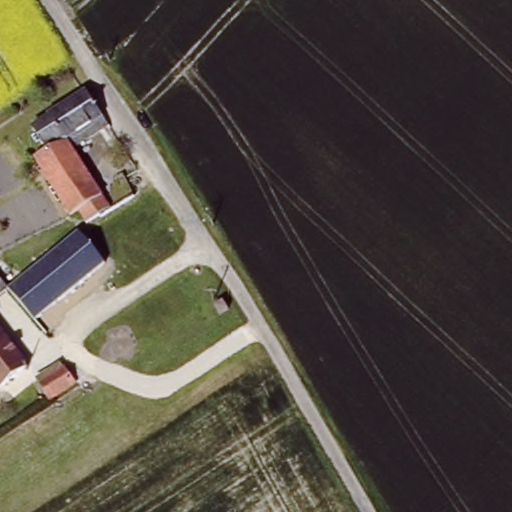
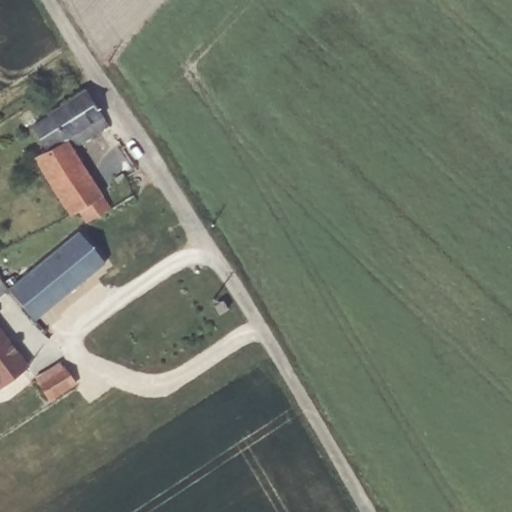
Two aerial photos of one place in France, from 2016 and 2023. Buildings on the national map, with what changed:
unchanged [(98,217),(88,224),(81,213),(76,215),(41,163),(50,157),(45,150),(52,145),(47,136),(57,129),(50,118),(87,93),(91,90),(117,133),(105,141),(98,132),(75,147),(107,196),(115,207),(110,210),(98,217)]
unchanged [(9,294),(0,301),(0,265),(3,268),(13,261),(25,276),(78,230),(90,241),(97,233),(117,253),(106,263),(30,319),(9,294)]
unchanged [(33,366),(0,391),(0,326),(33,366)]

